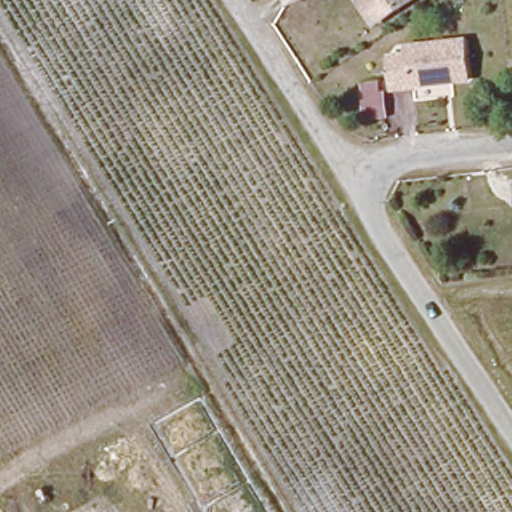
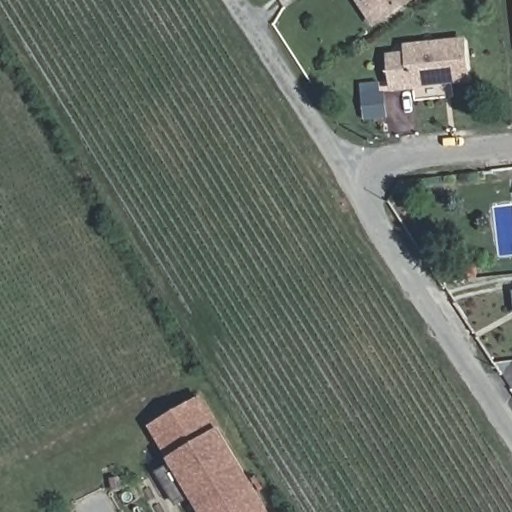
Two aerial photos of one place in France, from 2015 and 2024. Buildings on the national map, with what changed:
unchanged [(354,0),(416,0),(384,22),(373,29),(354,0)]
unchanged [(466,81),(389,91),(386,58),(406,57),(406,51),(464,44),(466,81)]
new [(384,81),(388,118),(369,120),(366,83),(384,81)]
new [(202,396),(220,427),(272,512),(200,512),(169,459),(149,425),(202,396)]

